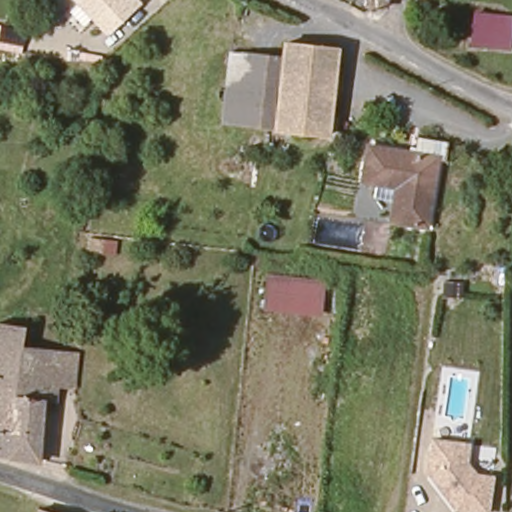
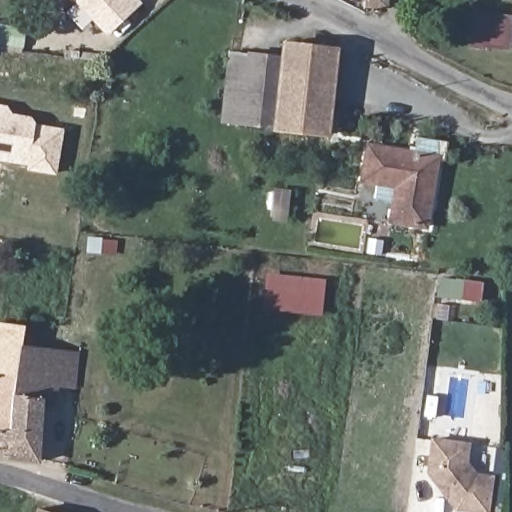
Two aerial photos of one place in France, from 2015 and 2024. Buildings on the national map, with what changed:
unchanged [(107,36),(72,0),(135,0),(140,4),(107,36)]
unchanged [(385,14),(366,10),(367,0),(386,0),(385,14)]
unchanged [(512,8),(512,45),(473,45),(474,8),(512,8)]
new [(26,40),(22,55),(0,49),(0,33),(26,40)]
unchanged [(293,39),(340,41),(335,131),(288,127),(291,61),(293,39)]
unchanged [(227,125),(232,57),(291,61),(288,127),(272,127),(227,125)]
new [(7,106),(13,114),(31,116),(38,125),(65,129),(56,175),(26,170),(27,165),(0,160),(0,105),(7,106)]
unchanged [(395,227),(400,190),(360,185),(365,151),(411,156),(412,139),(446,142),(445,164),(440,162),(429,232),(395,227)]
unchanged [(320,316),(260,311),(265,274),(325,280),(320,316)]
unchanged [(25,320),(21,342),(8,428),(0,427),(0,316),(25,320)]
unchanged [(8,428),(21,342),(65,349),(85,352),(78,393),(59,390),(57,398),(49,396),(37,460),(0,450),(0,427),(8,428)]
unchanged [(470,463),(477,473),(493,476),(489,512),(454,512),(437,498),(425,472),(431,439),(470,443),(470,463)]

